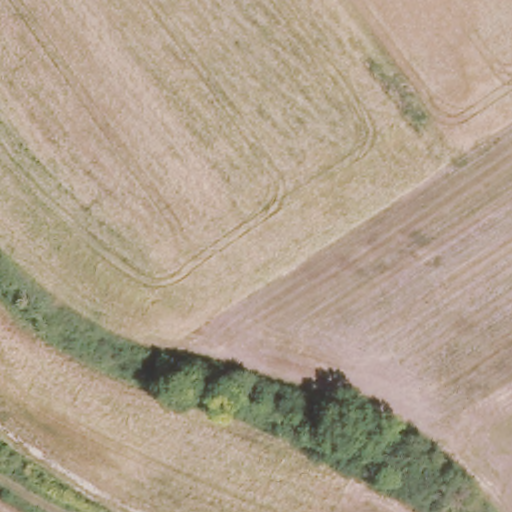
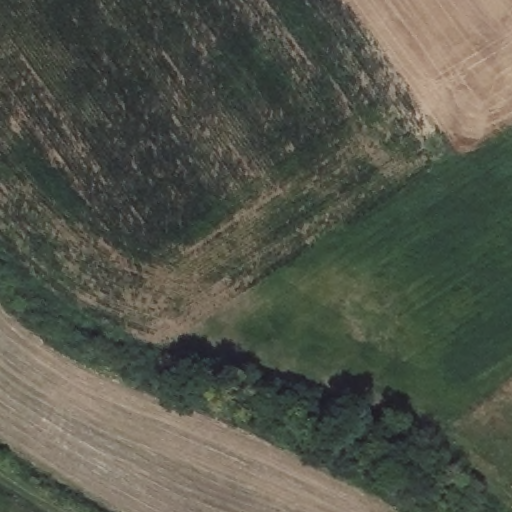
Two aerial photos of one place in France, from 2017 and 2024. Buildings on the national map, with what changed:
[]

